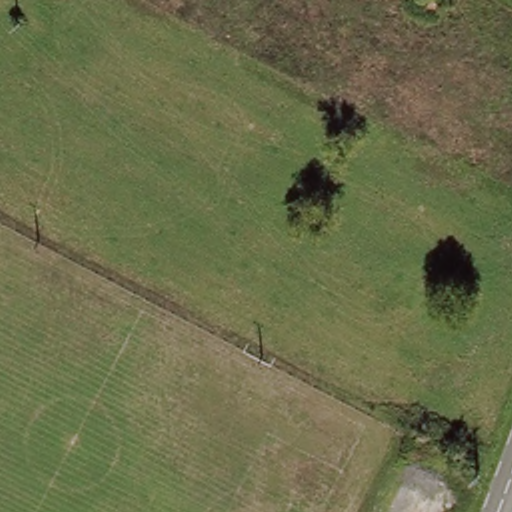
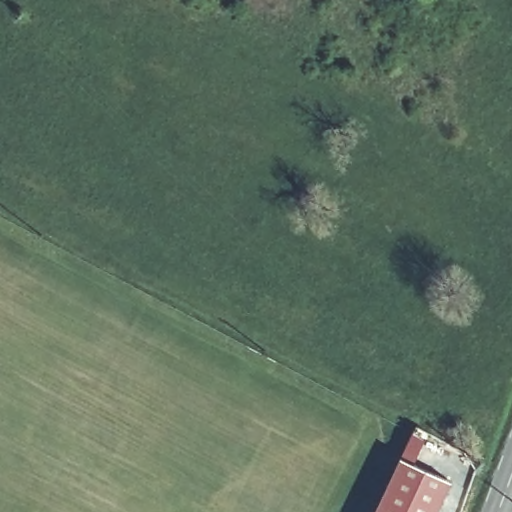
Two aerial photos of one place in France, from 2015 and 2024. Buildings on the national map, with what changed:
unchanged [(437,10),(420,0),(443,0),(437,10)]
new [(413,430),(426,437),(414,462),(454,481),(441,512),(373,512),(400,455),(413,430)]

